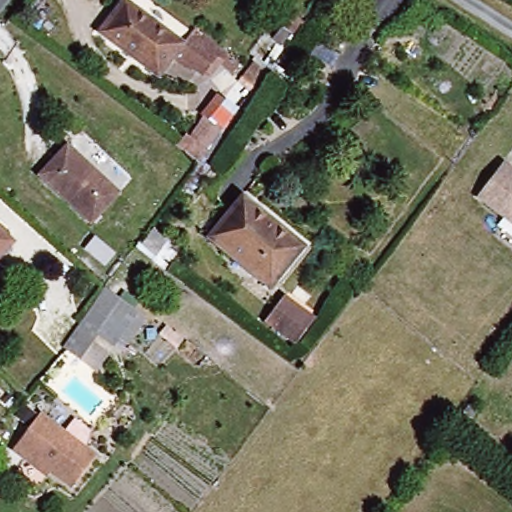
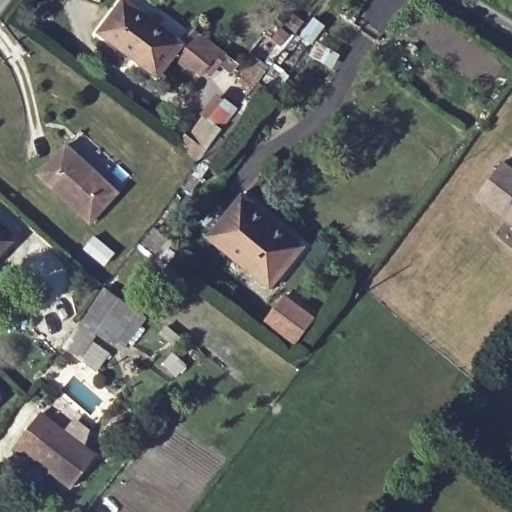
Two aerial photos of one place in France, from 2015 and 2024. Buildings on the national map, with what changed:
unchanged [(160,77),(103,39),(129,1),(186,40),(175,56),(160,77)]
unchanged [(194,29),(221,47),(202,74),(175,56),(186,40),(194,29)]
unchanged [(223,129),(220,133),(229,139),(206,171),(173,147),(184,131),(190,136),(204,116),(223,129)]
unchanged [(121,190),(96,221),(39,177),(63,146),(121,190)]
unchanged [(505,164),(512,170),(512,222),(479,197),(505,164)]
unchanged [(244,194),(308,241),(275,287),(210,240),(244,194)]
unchanged [(0,226),(16,239),(0,258),(0,226)]
unchanged [(100,334),(97,341),(111,351),(98,372),(65,347),(107,287),(147,318),(124,351),(100,334)]
unchanged [(314,315),(295,342),(267,321),(286,295),(314,315)]
unchanged [(97,467),(74,497),(34,467),(31,472),(16,461),(43,427),(97,467)]

